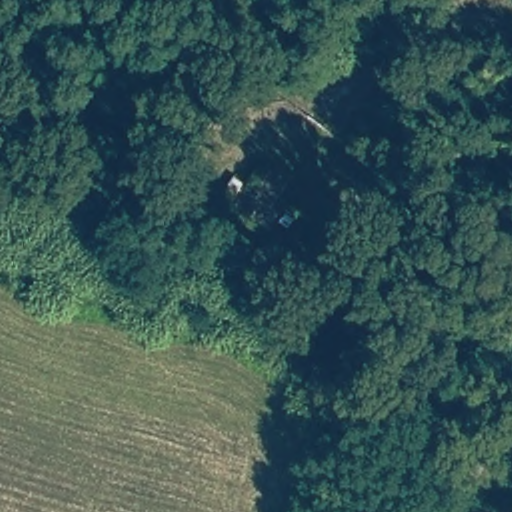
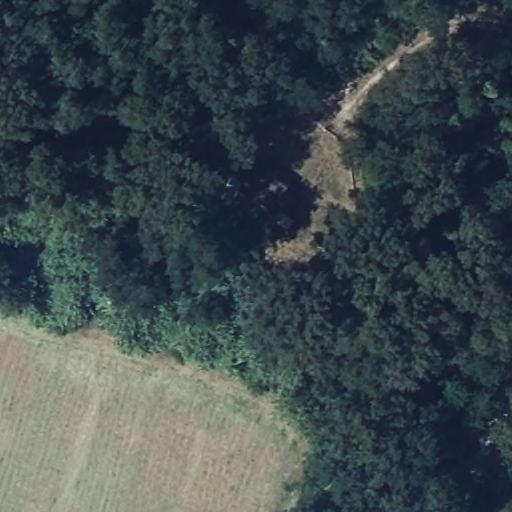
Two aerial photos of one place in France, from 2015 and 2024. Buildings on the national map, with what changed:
unchanged [(287,189),(268,212),(249,197),(267,174),(287,189)]

